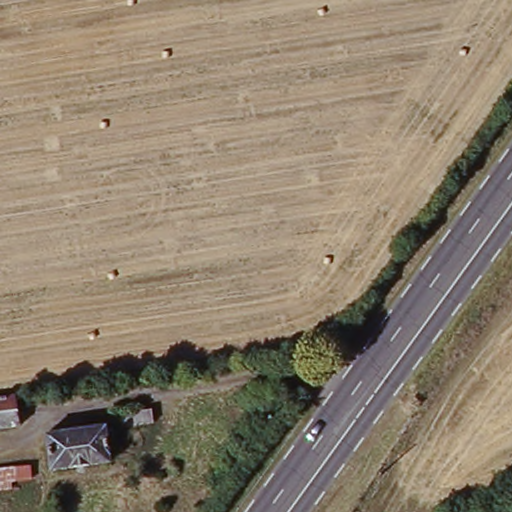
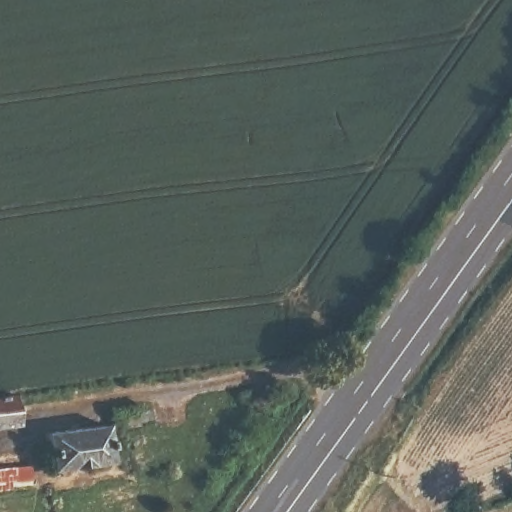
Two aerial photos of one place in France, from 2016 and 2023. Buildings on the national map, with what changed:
unchanged [(12,429),(0,431),(0,406),(8,405),(12,429)]
unchanged [(46,435),(108,424),(113,462),(52,472),(46,435)]
unchanged [(33,468),(33,491),(0,493),(0,472),(33,468)]

